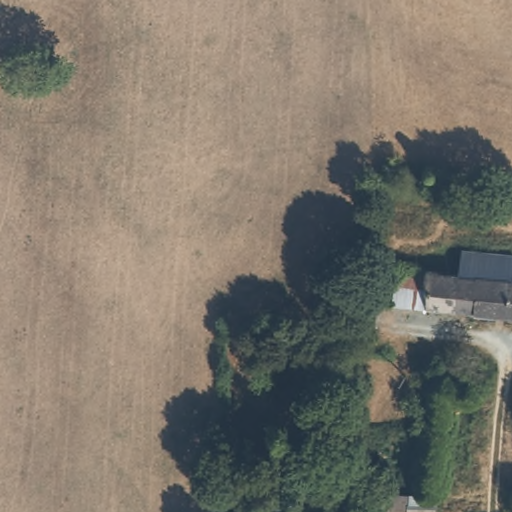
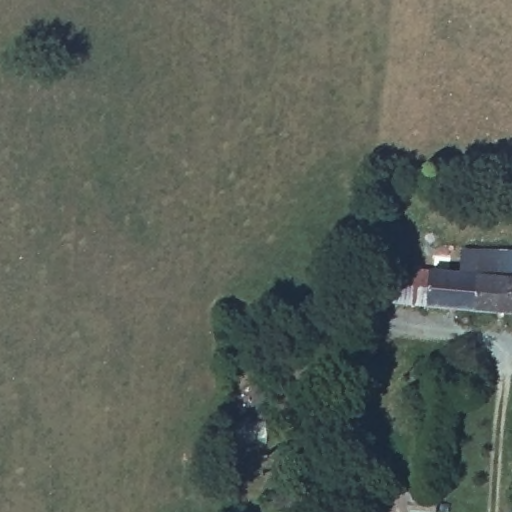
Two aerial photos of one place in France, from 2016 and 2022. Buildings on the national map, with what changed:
unchanged [(476,315),(457,314),(425,311),(427,286),(386,283),(388,265),(450,273),(451,264),(460,265),(461,253),(510,257),(508,280),(505,318),(476,315)]
unchanged [(386,283),(427,286),(425,311),(384,307),(386,283)]
unchanged [(385,503),(430,505),(429,512),(373,512),(373,503),(385,503)]

